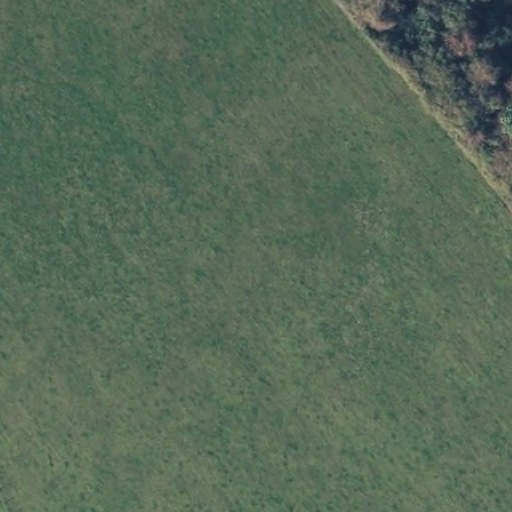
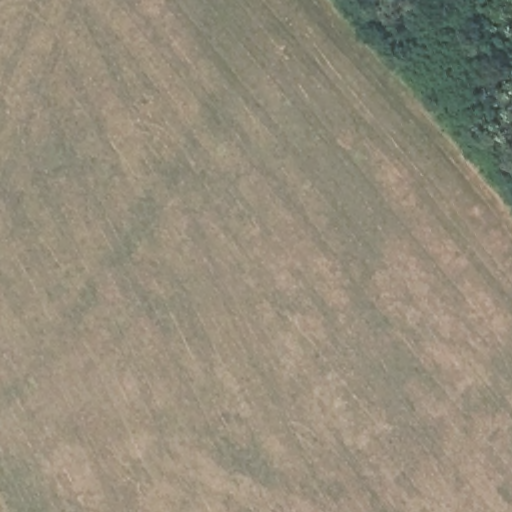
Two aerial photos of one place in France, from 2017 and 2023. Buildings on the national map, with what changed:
[]

